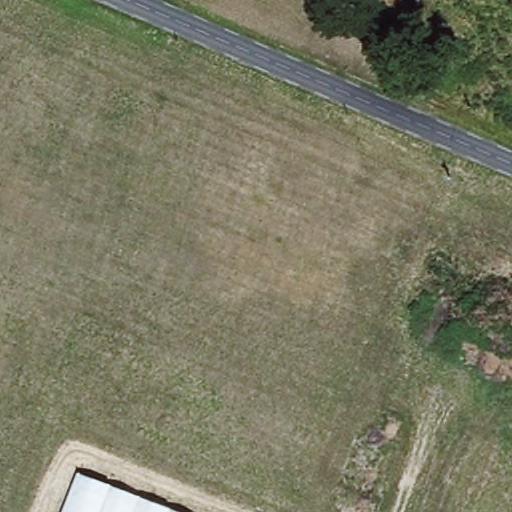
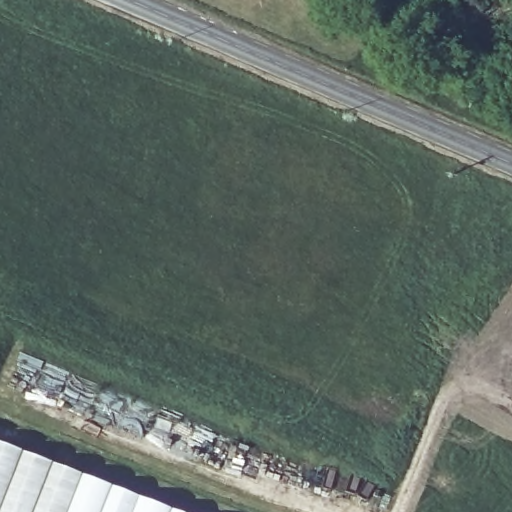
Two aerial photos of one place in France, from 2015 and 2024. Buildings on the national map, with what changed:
new [(63,512),(0,512),(0,443),(78,473),(63,512)]
unchanged [(63,512),(78,473),(178,512),(63,512)]

